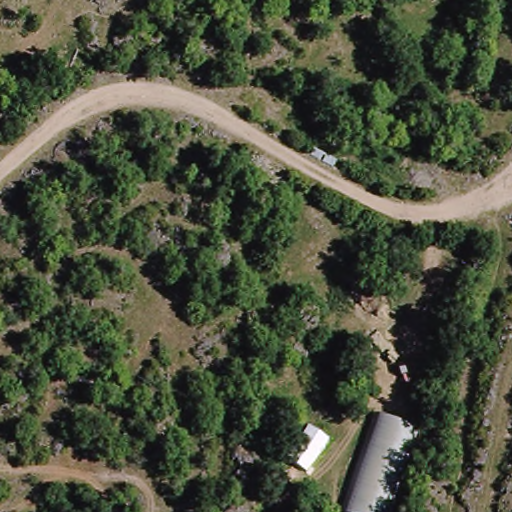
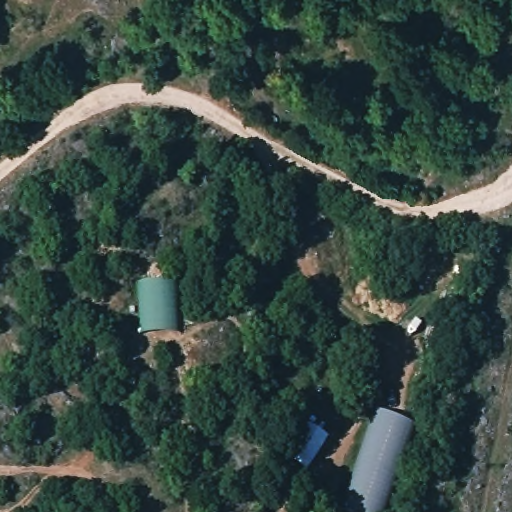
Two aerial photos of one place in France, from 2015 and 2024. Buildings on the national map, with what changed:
new [(176,332),(144,333),(143,281),(174,280),(176,332)]
unchanged [(387,512),(352,512),(348,510),(381,411),(417,423),(387,512)]
unchanged [(320,448),(307,467),(290,454),(310,422),(329,436),(320,448)]

